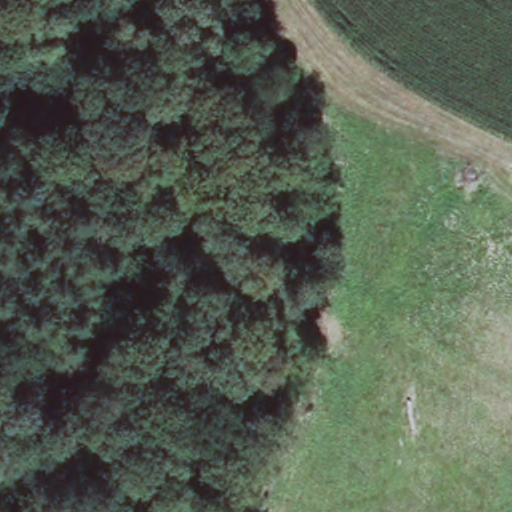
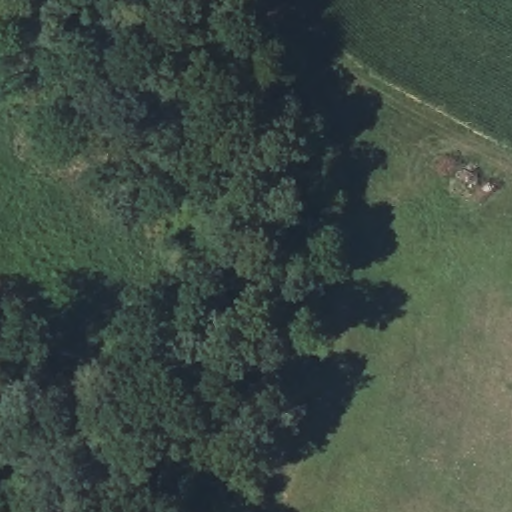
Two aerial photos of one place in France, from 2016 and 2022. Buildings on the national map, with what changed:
unchanged [(289,47),(307,36),(331,75),(313,86),(289,47)]

